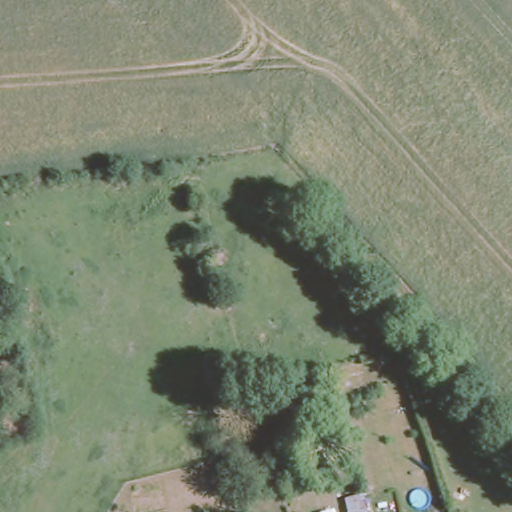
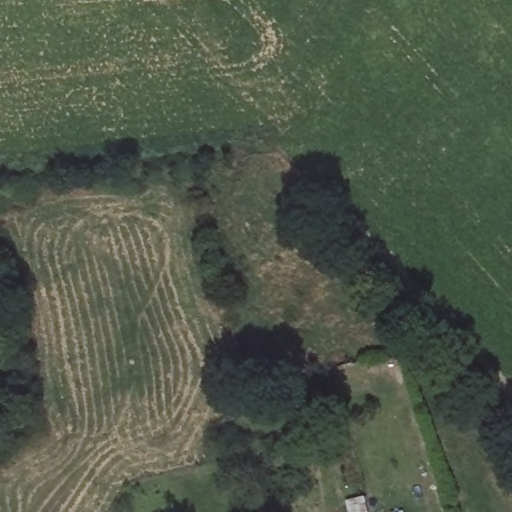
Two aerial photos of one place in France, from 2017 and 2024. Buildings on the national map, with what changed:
unchanged [(364,512),(347,512),(346,504),(363,501),(364,512)]

